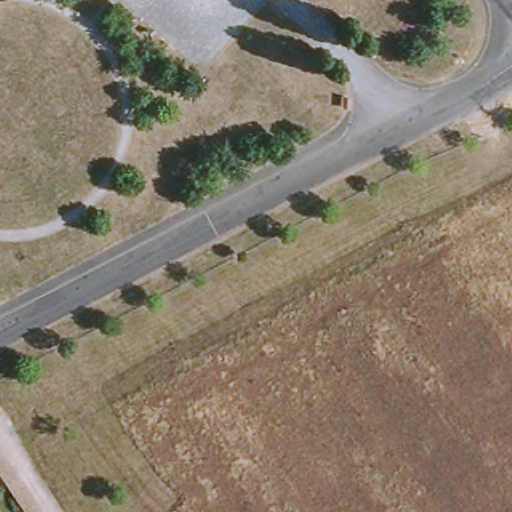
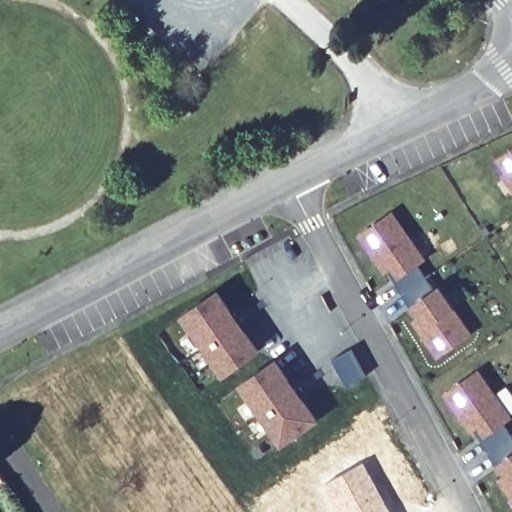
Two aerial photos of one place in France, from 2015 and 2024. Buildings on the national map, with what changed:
new [(503,157),(512,151),(512,170),(503,157)]
new [(509,173),(512,170),(512,178),(509,173)]
new [(395,212),(428,259),(420,264),(439,289),(442,287),(474,333),(442,356),(417,320),(424,316),(417,305),(415,307),(406,293),(407,292),(398,278),(402,275),(396,266),(388,271),(363,235),(395,212)]
new [(222,293),(262,351),(228,375),(188,317),(222,293)]
new [(354,351),(369,377),(349,388),(335,361),(354,351)]
new [(279,362),(320,420),(286,444),(245,386),(279,362)]
new [(481,370),(512,415),(512,416),(505,421),(512,431),(512,492),(503,479),(509,474),(502,463),(501,464),(491,450),(492,449),(483,436),(487,433),(481,424),(473,429),(448,393),(481,370)]
new [(363,462),(391,512),(338,512),(324,486),(363,462)]
unchanged [(0,486),(0,473),(6,482),(0,486)]

